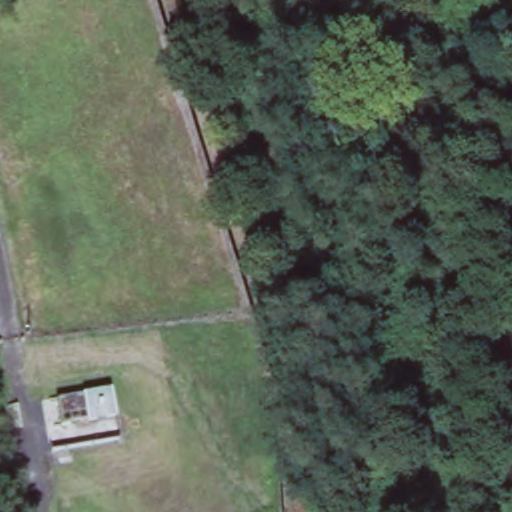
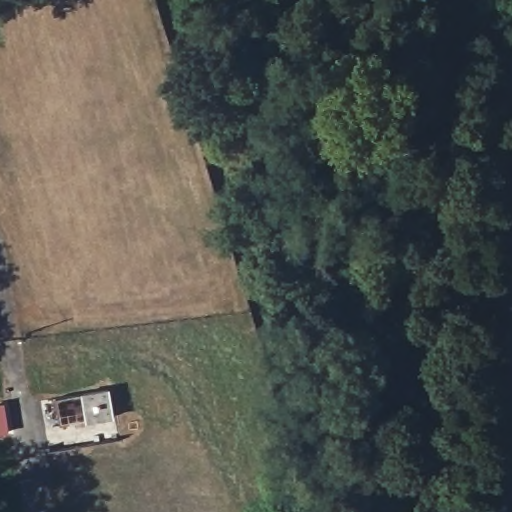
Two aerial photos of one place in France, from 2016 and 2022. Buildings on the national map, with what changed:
unchanged [(82,391),(116,385),(119,413),(87,417),(82,391)]

